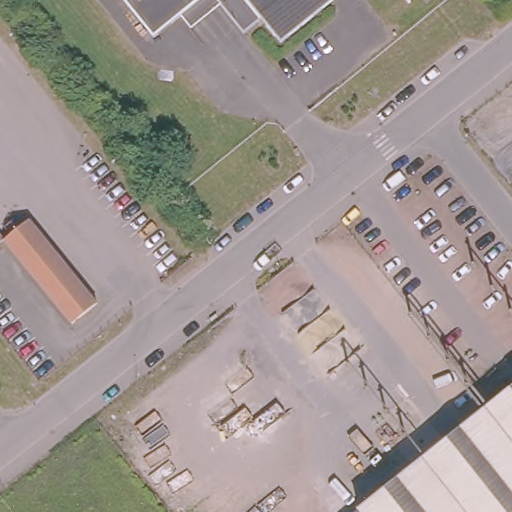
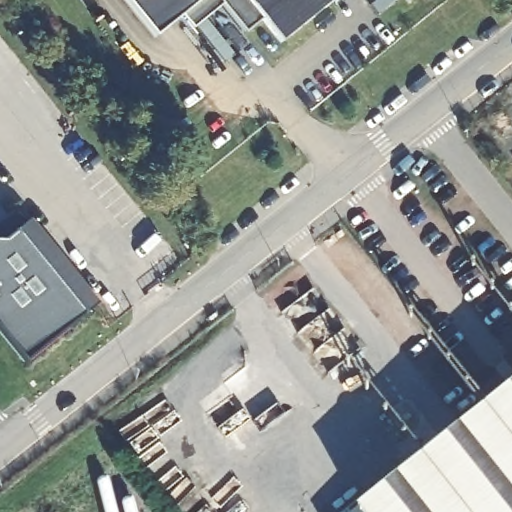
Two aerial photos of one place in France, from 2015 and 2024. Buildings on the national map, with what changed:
unchanged [(157,35),(127,0),(199,0),(157,35)]
unchanged [(285,39),(265,15),(247,30),(222,0),(331,0),(285,39)]
new [(27,218),(92,299),(20,349),(0,323),(0,236),(4,236),(27,218)]
demolished [(97,303),(71,323),(4,240),(29,220),(97,303)]
demolished [(0,235),(4,240),(0,243),(0,235)]
unchanged [(362,512),(358,507),(512,389),(512,512),(362,512)]
unchanged [(353,512),(358,507),(362,512),(353,512)]

